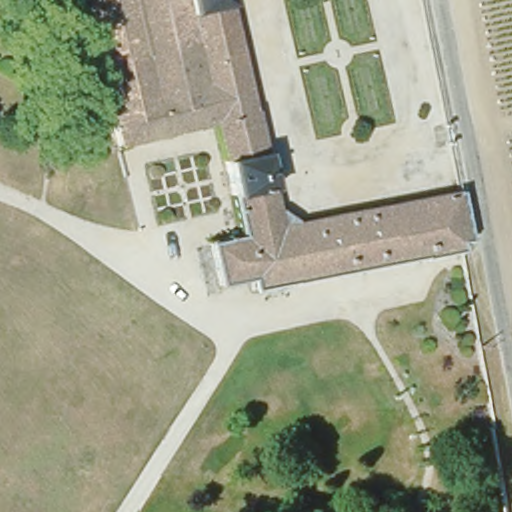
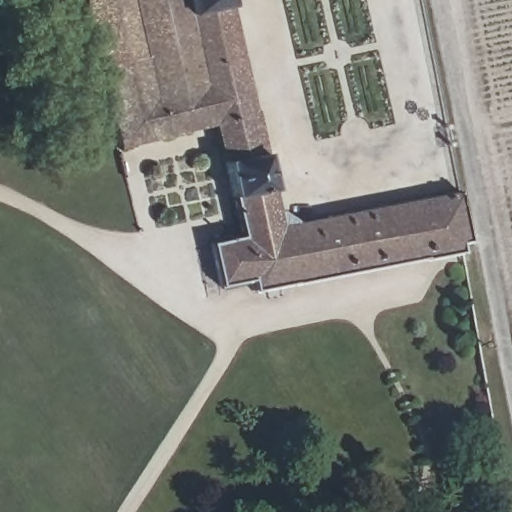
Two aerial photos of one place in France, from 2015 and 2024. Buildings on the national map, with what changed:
unchanged [(146,53),(105,62),(91,0),(135,0),(146,53)]
unchanged [(146,53),(135,0),(187,0),(192,18),(204,74),(215,120),(216,122),(124,144),(105,62),(146,53)]
unchanged [(256,275),(224,283),(213,238),(245,231),(219,121),(216,122),(215,120),(204,74),(192,18),(187,0),(233,0),(283,207),(304,219),(464,187),(468,209),(474,239),(466,240),(468,249),(294,280),(259,287),(256,275)]

